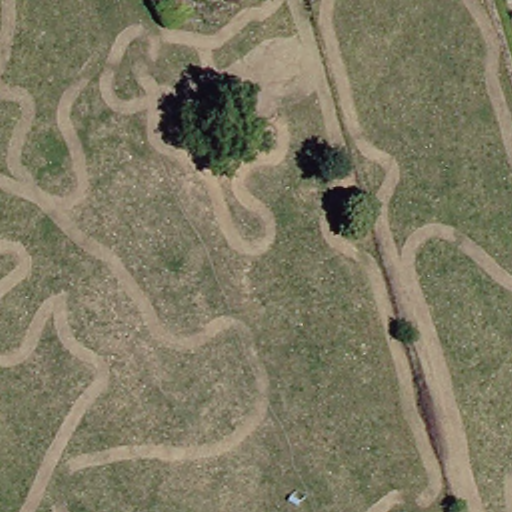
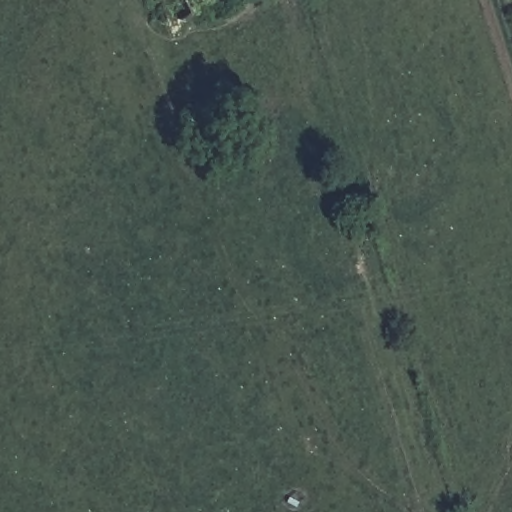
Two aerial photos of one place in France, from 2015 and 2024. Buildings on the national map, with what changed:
unchanged [(147,0),(174,0),(180,12),(156,23),(147,0)]
unchanged [(209,0),(180,12),(174,0),(209,0)]

